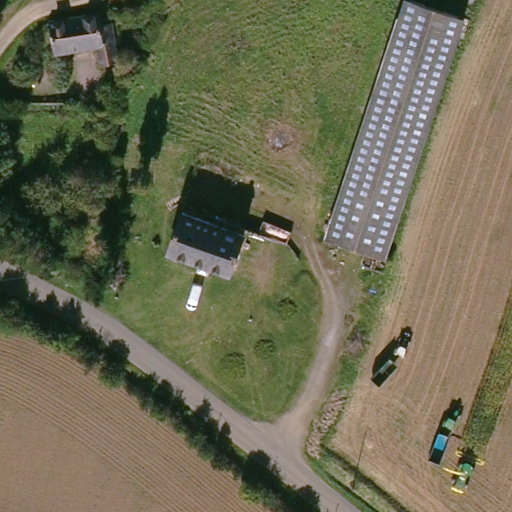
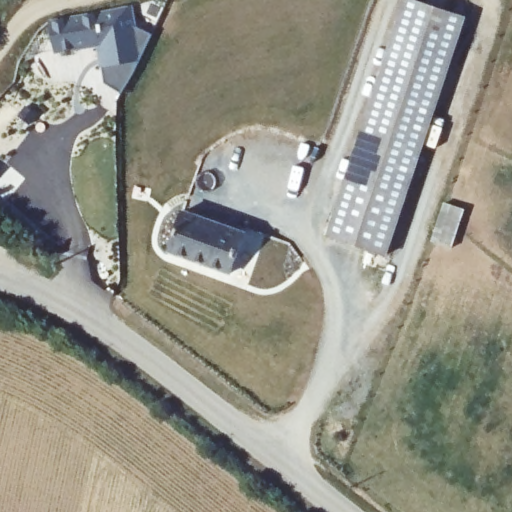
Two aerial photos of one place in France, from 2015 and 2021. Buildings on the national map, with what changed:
unchanged [(408,0),(465,20),(402,208),(346,189),(408,0)]
new [(132,6),(137,27),(152,35),(121,92),(105,82),(102,65),(118,63),(116,45),(107,46),(104,12),(132,6)]
unchanged [(107,46),(116,45),(118,63),(102,65),(100,47),(53,54),(51,30),(60,29),(59,21),(104,12),(107,46)]
demolished [(45,50),(37,81),(20,79),(24,63),(38,45),(45,50)]
unchanged [(386,257),(330,238),(346,189),(402,208),(386,257)]
unchanged [(170,256),(183,216),(244,238),(230,279),(170,256)]

